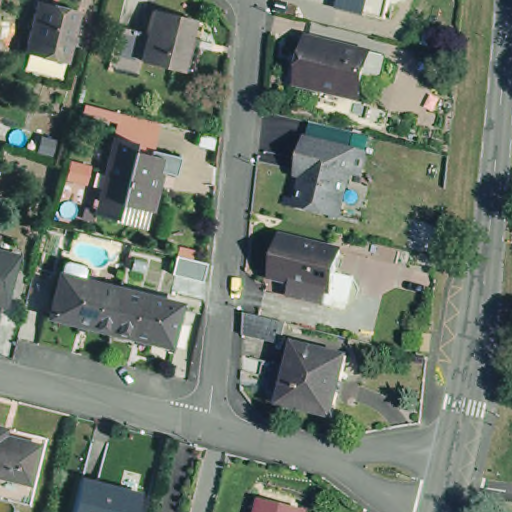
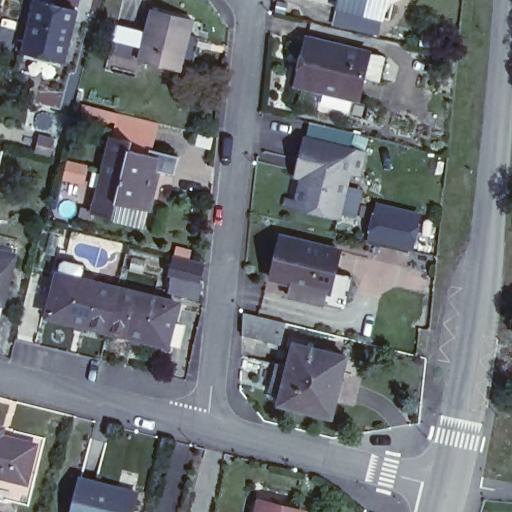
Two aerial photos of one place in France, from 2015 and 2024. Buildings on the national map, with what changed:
unchanged [(23,57),(28,38),(38,0),(82,0),(70,48),(65,67),(23,57)]
unchanged [(371,1),(365,0),(372,0),(371,1)]
unchanged [(139,56),(153,7),(194,17),(181,67),(139,56)]
unchanged [(296,77),(306,30),(356,42),(356,43),(368,46),(382,50),(376,76),(361,72),(356,93),(296,77)]
unchanged [(84,205),(88,190),(103,129),(121,134),(119,141),(138,146),(138,141),(168,149),(163,167),(143,162),(140,175),(145,176),(138,202),(135,217),(84,205)]
unchanged [(301,150),(305,151),(309,132),(368,146),(363,167),(353,165),(343,209),(300,198),(290,196),(301,150)]
new [(375,200),(423,212),(412,250),(364,238),(375,200)]
unchanged [(289,289),(292,276),(271,272),(281,228),(339,241),(329,285),(326,284),(323,297),(289,289)]
unchanged [(9,251),(0,291),(0,249),(9,251)]
unchanged [(198,278),(167,270),(172,252),(203,260),(198,278)]
unchanged [(43,315),(53,273),(56,260),(77,265),(74,278),(110,286),(100,328),(43,315)]
unchanged [(173,322),(176,323),(171,344),(161,342),(100,328),(110,286),(171,300),(177,302),(173,322)]
unchanged [(273,339),(242,332),(243,311),(278,320),(285,321),(279,341),(273,339)]
unchanged [(288,398),(289,388),(279,385),(286,358),(296,360),(301,336),(355,349),(339,411),(288,398)]
unchanged [(0,480),(0,414),(7,416),(5,423),(39,431),(25,486),(0,480)]
unchanged [(143,490),(137,512),(75,512),(84,475),(143,490)]
unchanged [(303,505),(301,512),(256,512),(261,494),(303,505)]

